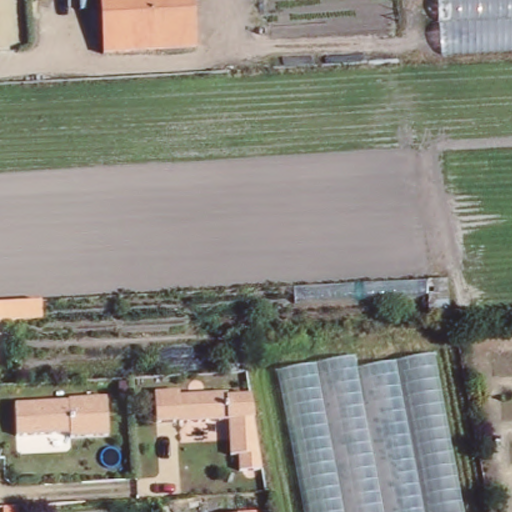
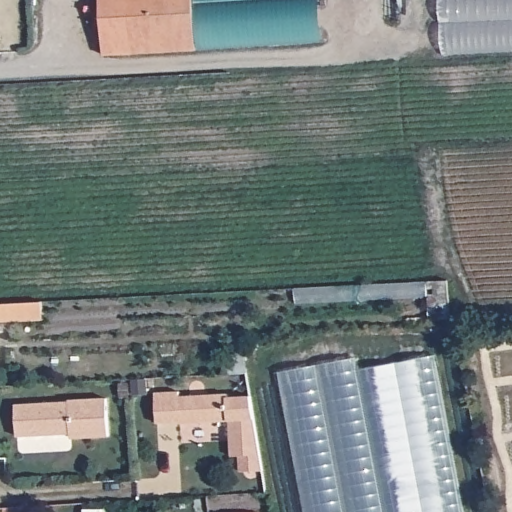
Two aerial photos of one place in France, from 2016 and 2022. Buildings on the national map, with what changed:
unchanged [(198,50),(107,55),(104,0),(195,0),(198,50)]
new [(198,50),(195,0),(319,0),(321,41),(198,50)]
unchanged [(439,0),(512,0),(512,49),(441,52),(439,0)]
unchanged [(17,304),(48,302),(49,319),(0,322),(0,305),(17,304)]
unchanged [(303,512),(277,369),(358,355),(361,367),(438,353),(467,512),(303,512)]
unchanged [(259,439),(265,471),(241,472),(241,456),(232,456),(231,421),(181,423),(181,422),(158,423),(156,393),(180,392),(181,397),(229,394),(230,398),(252,397),(259,439)]
unchanged [(70,402),(70,400),(108,398),(110,436),(72,438),(72,433),(18,435),(16,404),(70,402)]

